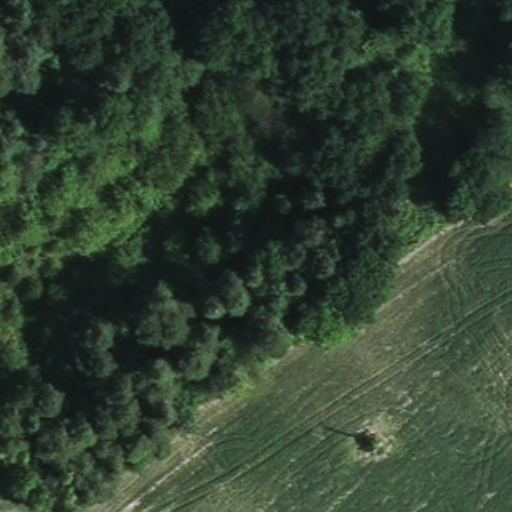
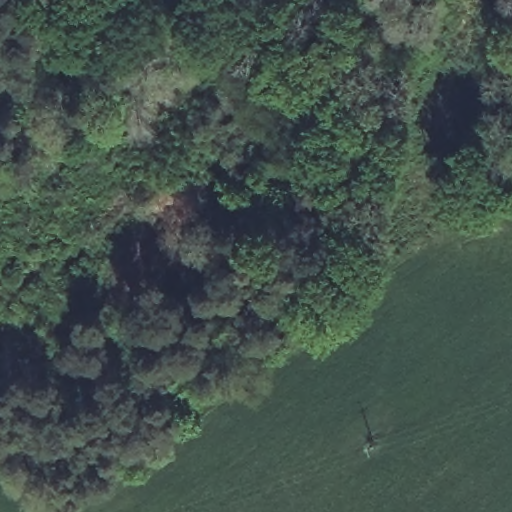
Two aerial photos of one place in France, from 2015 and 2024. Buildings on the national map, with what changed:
[]

